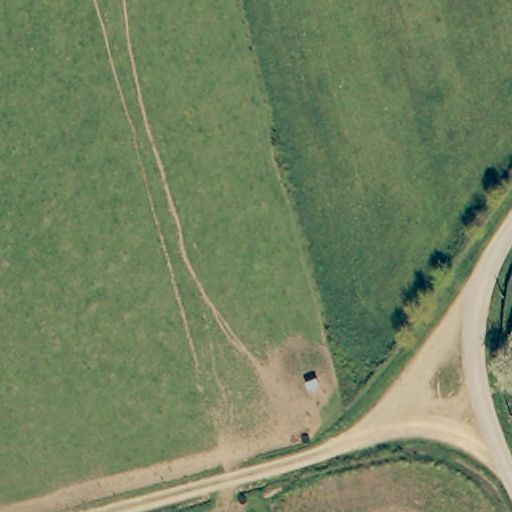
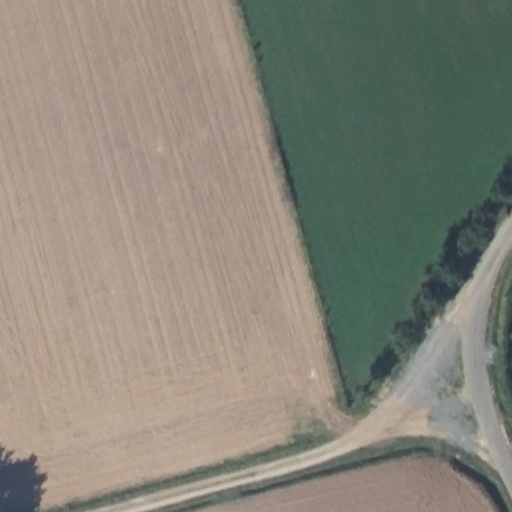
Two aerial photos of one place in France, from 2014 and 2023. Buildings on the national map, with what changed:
[]

